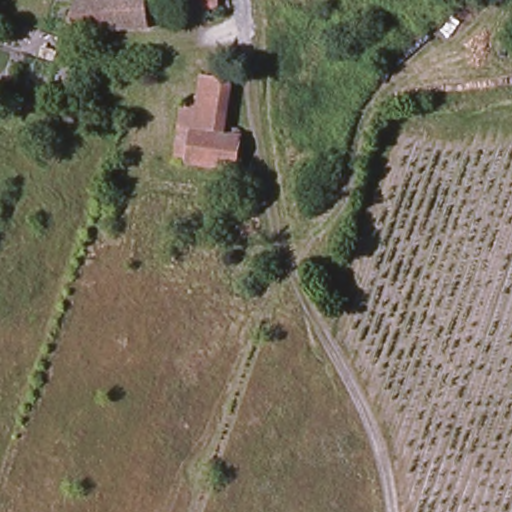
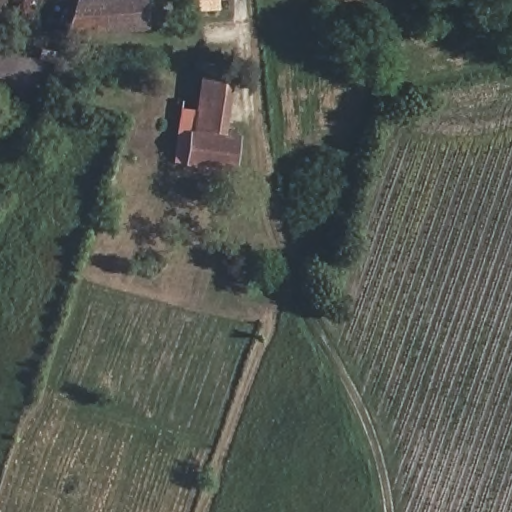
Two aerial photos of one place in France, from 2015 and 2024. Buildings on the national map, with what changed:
unchanged [(185,0),(213,0),(214,14),(185,14),(185,0)]
unchanged [(103,41),(101,36),(65,39),(67,6),(144,1),(146,39),(103,41)]
unchanged [(233,134),(198,130),(202,104),(203,90),(236,96),(233,134)]
unchanged [(142,98),(151,98),(150,138),(140,138),(142,98)]
unchanged [(171,163),(172,151),(179,101),(202,104),(198,130),(193,166),(171,163)]
unchanged [(193,166),(198,130),(233,134),(240,135),(237,160),(235,171),(193,166)]

